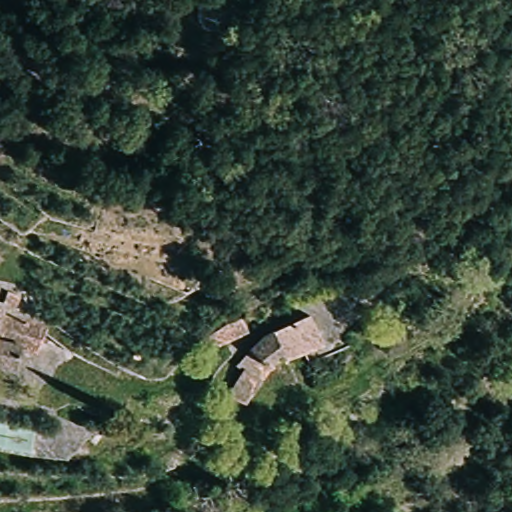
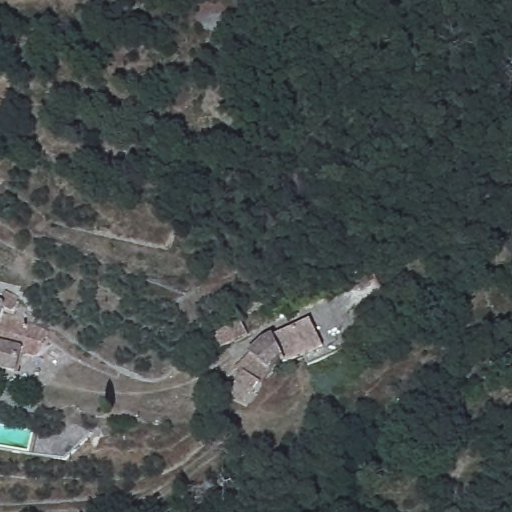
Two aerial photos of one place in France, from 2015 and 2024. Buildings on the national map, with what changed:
unchanged [(16,289),(15,297),(10,325),(1,325),(0,329),(0,284),(16,289)]
unchanged [(232,393),(243,375),(236,370),(251,355),(271,337),(312,322),(323,352),(290,361),(274,372),(249,403),(232,393)]
unchanged [(0,368),(0,341),(24,348),(19,372),(0,368)]
unchanged [(95,437),(63,461),(29,455),(35,425),(95,437)]

